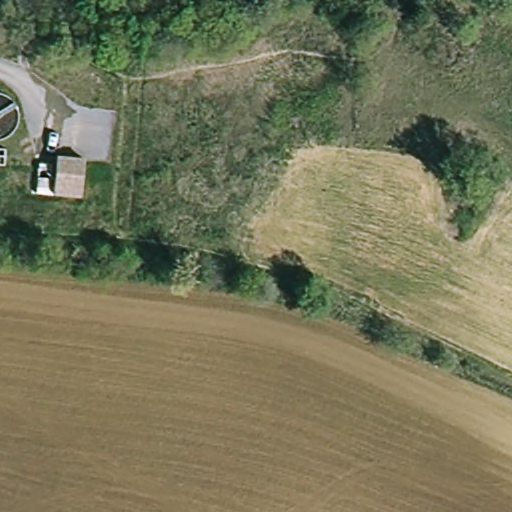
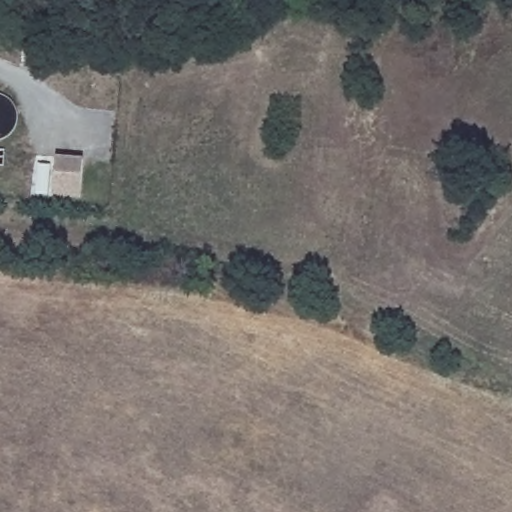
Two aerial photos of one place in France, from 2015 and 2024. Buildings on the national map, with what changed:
unchanged [(79,197),(53,196),(55,155),(82,157),(79,197)]

